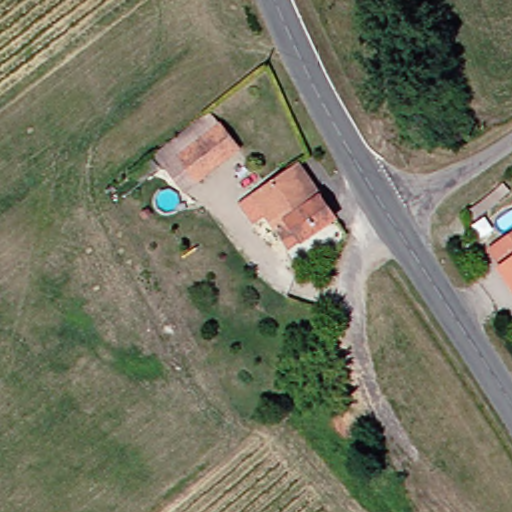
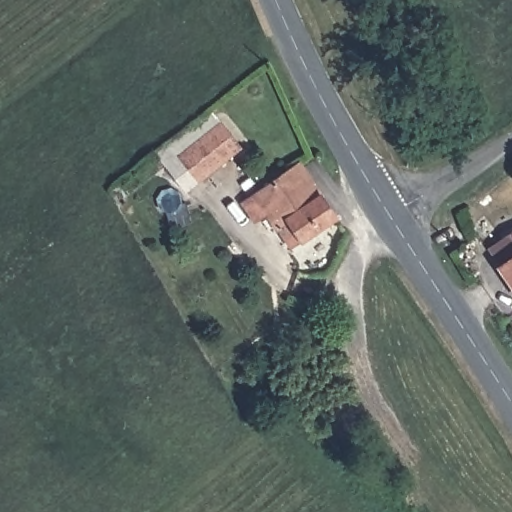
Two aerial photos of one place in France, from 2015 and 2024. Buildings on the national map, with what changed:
unchanged [(210,126),(227,148),(188,180),(171,159),(210,126)]
unchanged [(305,240),(302,236),(293,246),(269,217),(266,212),(257,201),(261,197),(294,168),(298,165),(311,181),(322,195),(338,215),(305,240)]
unchanged [(512,261),(512,284),(501,268),(512,261)]

